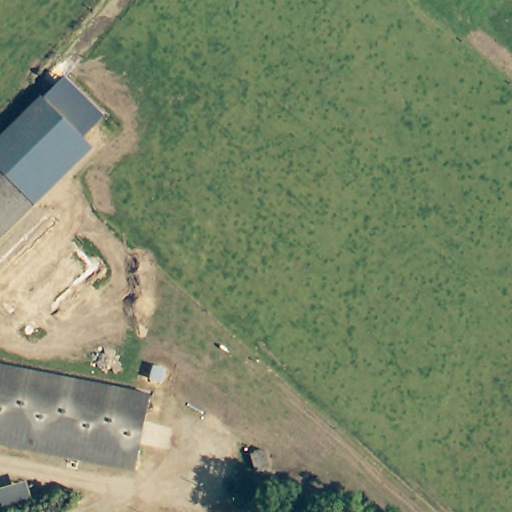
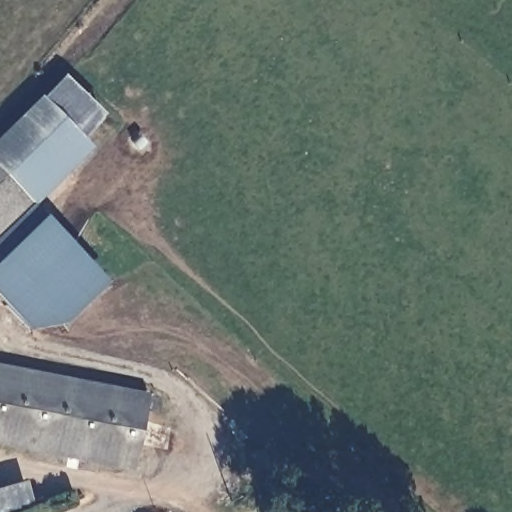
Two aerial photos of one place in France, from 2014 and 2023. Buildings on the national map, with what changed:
unchanged [(45,92),(64,77),(105,117),(85,135),(45,92)]
unchanged [(45,92),(97,147),(0,244),(0,137),(45,92)]
new [(45,215),(109,282),(66,324),(28,331),(0,300),(0,244),(37,207),(45,215)]
unchanged [(152,395),(136,462),(133,474),(110,467),(0,441),(0,359),(152,395)]
unchanged [(32,482),(38,512),(0,512),(0,488),(32,482)]

